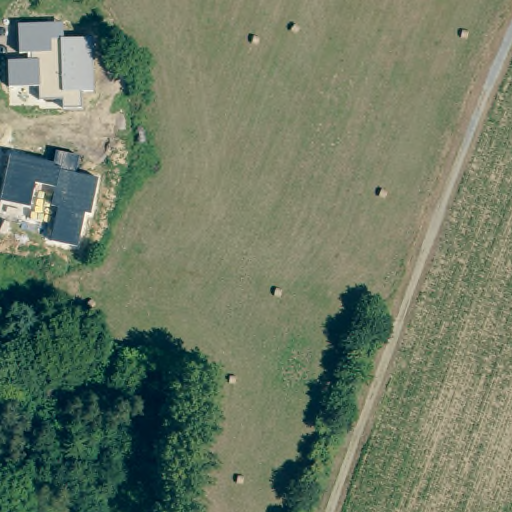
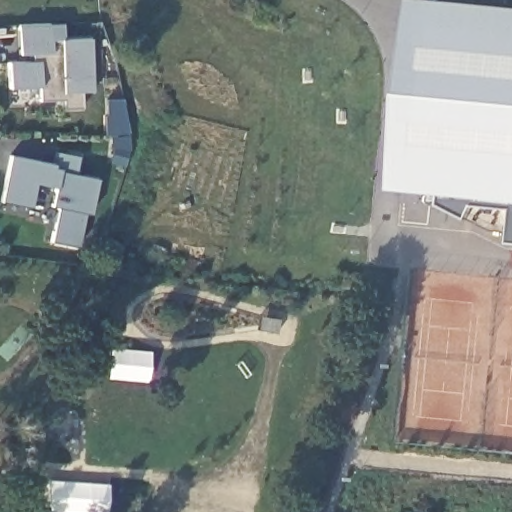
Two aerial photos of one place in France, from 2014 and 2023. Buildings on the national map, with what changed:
new [(428,0),(512,8),(512,232),(494,231),(469,219),(441,206),(445,195),(396,192),(418,0),(428,0)]
unchanged [(9,60),(33,60),(34,51),(20,51),(20,24),(64,23),(63,39),(93,38),(93,90),(81,90),(81,107),(64,108),(64,99),(39,99),(39,85),(11,86),(9,60)]
unchanged [(11,154),(54,163),(55,150),(80,155),(76,174),(99,179),(90,213),(84,212),(78,246),(49,240),(56,205),(51,204),(55,187),(33,183),(29,207),(1,200),(11,154)]

